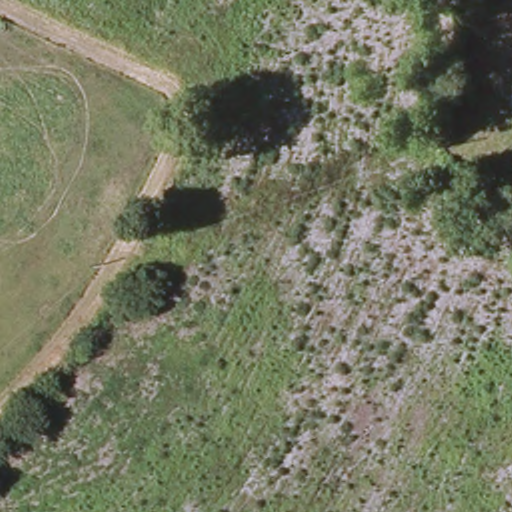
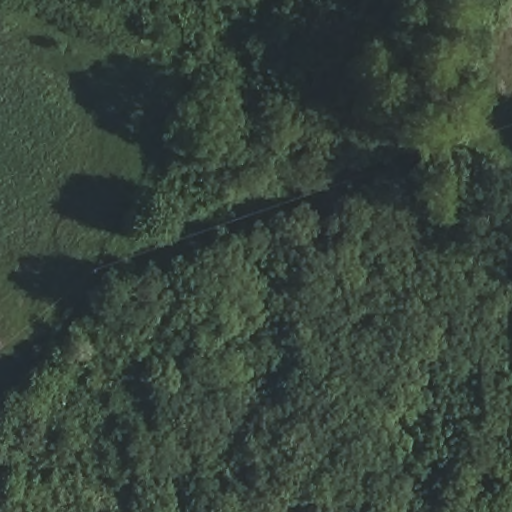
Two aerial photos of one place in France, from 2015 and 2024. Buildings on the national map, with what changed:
[]

